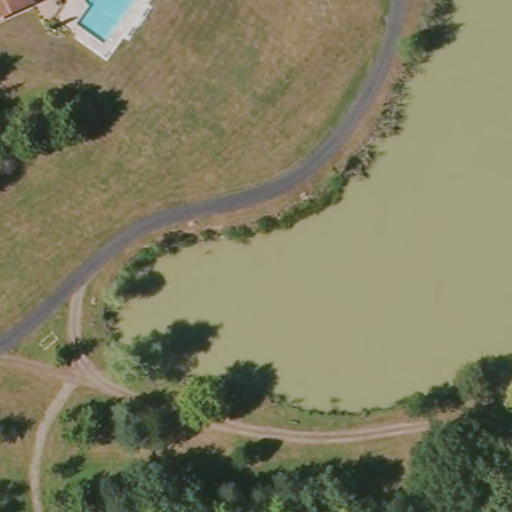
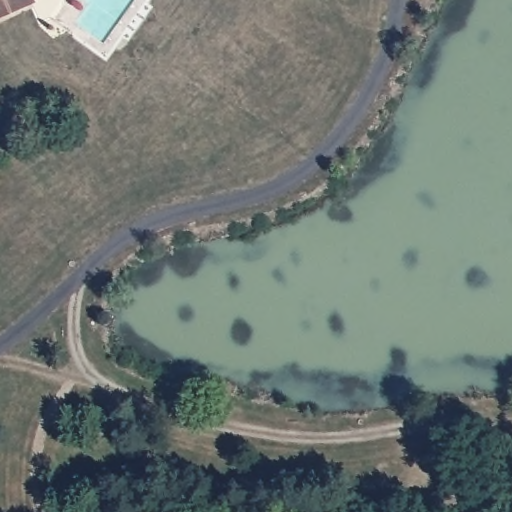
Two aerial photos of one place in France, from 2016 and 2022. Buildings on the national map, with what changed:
unchanged [(0,14),(0,0),(19,0),(21,5),(0,14)]

